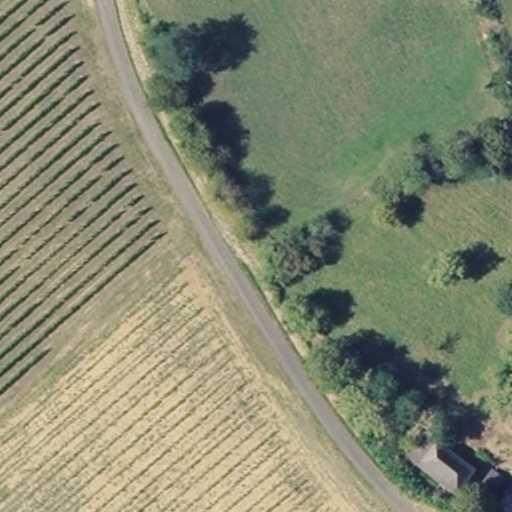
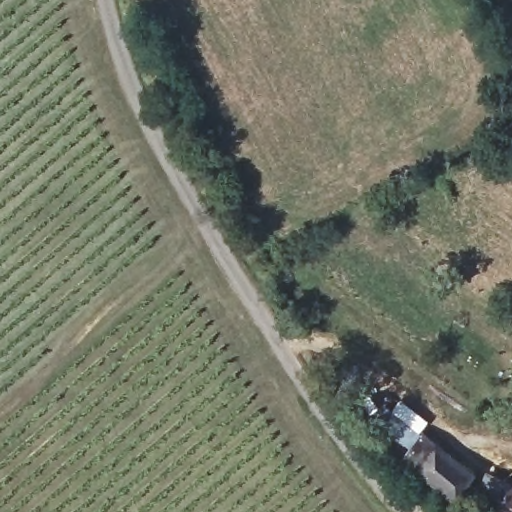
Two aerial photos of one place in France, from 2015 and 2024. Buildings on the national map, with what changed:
unchanged [(445,447),(473,474),(450,497),(422,469),(445,447)]
unchanged [(512,498),(512,512),(508,512),(505,511),(512,498)]

